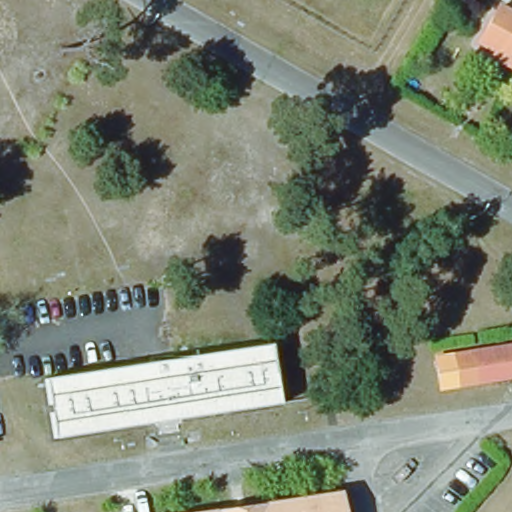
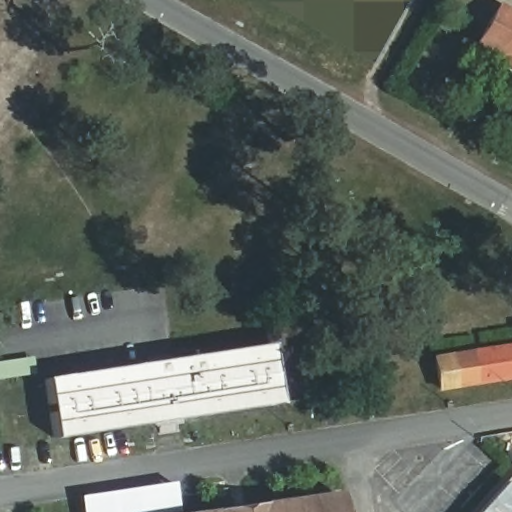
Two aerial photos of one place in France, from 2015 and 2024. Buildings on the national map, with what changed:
unchanged [(512,11),(512,68),(477,47),(499,3),(512,11)]
unchanged [(434,359),(512,347),(512,380),(439,392),(434,359)]
unchanged [(48,381),(271,348),(280,407),(56,441),(48,381)]
new [(170,482),(176,512),(78,512),(76,497),(170,482)]
unchanged [(342,496),(344,512),(222,512),(342,496)]

